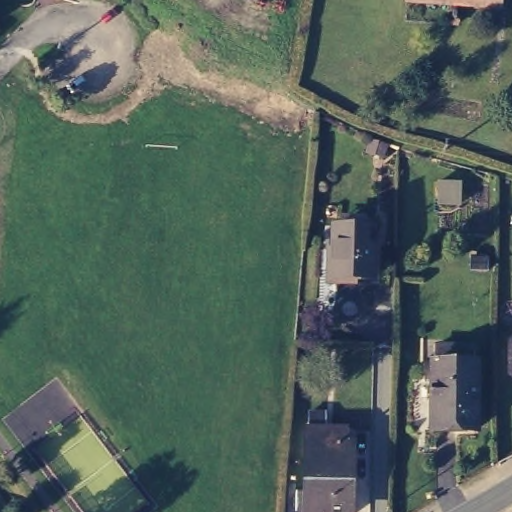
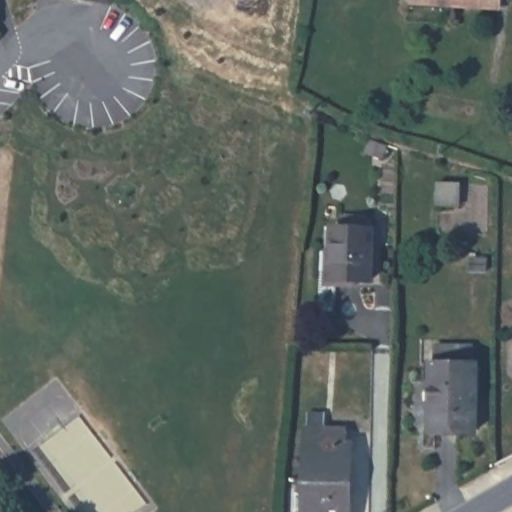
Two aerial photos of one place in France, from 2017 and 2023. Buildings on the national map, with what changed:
unchanged [(502,0),(502,3),(492,3),(412,0),(502,0)]
unchanged [(330,254),(330,229),(369,230),(369,279),(337,278),(330,278),(330,254)]
unchanged [(477,428),(434,428),(434,363),(437,363),(437,346),(473,347),(473,363),(477,364),(477,428)]
unchanged [(312,437),(312,420),(329,421),(329,437),(349,438),(349,454),(352,455),(350,512),(308,512),(312,437)]

